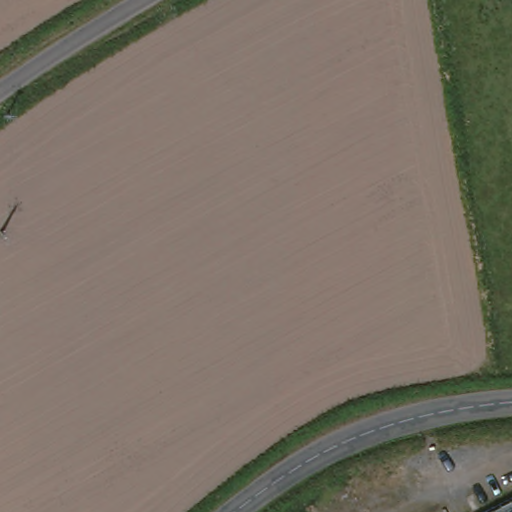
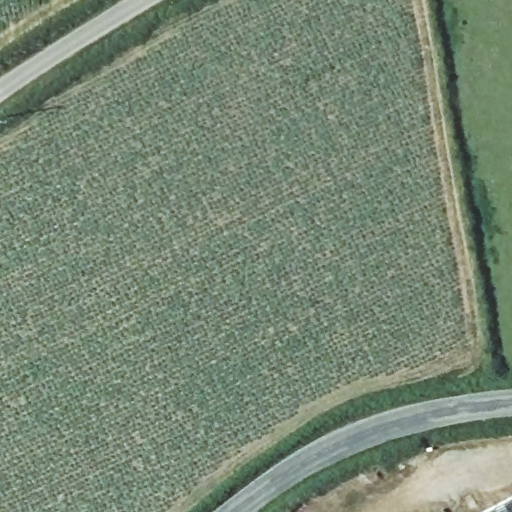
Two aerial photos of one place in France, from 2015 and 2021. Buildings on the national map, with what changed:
unchanged [(512,499),(512,512),(487,512),(512,499)]

